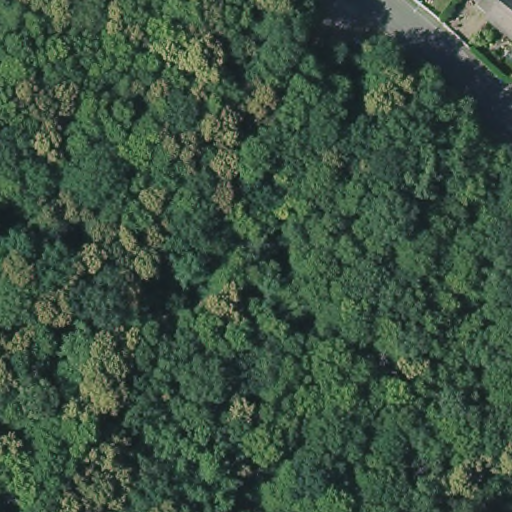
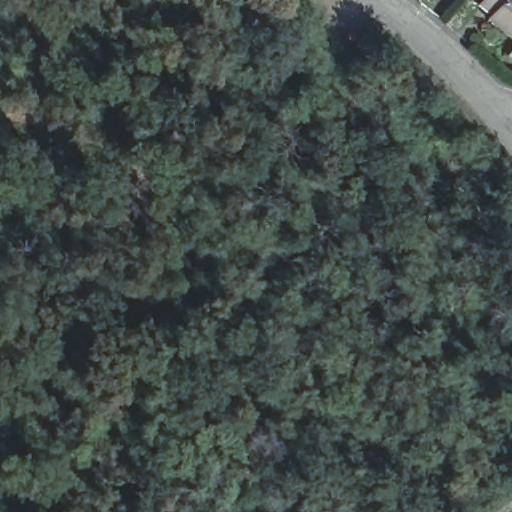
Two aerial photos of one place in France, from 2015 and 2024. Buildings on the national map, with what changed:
unchanged [(497,17),(482,4),(486,0),(512,0),(512,34),(495,19),(497,17)]

